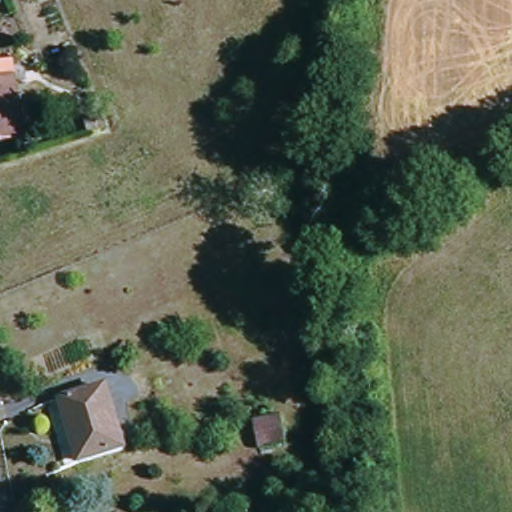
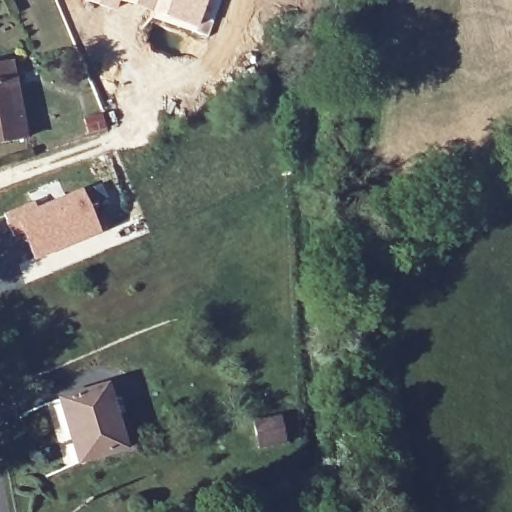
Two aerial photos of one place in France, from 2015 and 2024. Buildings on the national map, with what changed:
new [(207,37),(195,33),(118,3),(114,13),(79,0),(221,0),(207,37)]
unchanged [(0,140),(0,62),(10,60),(27,135),(0,140)]
unchanged [(81,133),(78,120),(96,112),(101,125),(81,133)]
new [(56,181),(64,200),(80,192),(90,213),(62,225),(41,188),(56,181)]
new [(32,206),(27,194),(41,188),(62,225),(25,240),(23,234),(14,238),(4,218),(32,206)]
new [(62,225),(90,213),(99,233),(34,261),(25,240),(62,225)]
unchanged [(62,398),(110,383),(128,445),(80,459),(62,398)]
demolished [(244,403),(270,395),(277,418),(251,426),(244,403)]
new [(248,422),(274,414),(282,437),(255,445),(248,422)]

